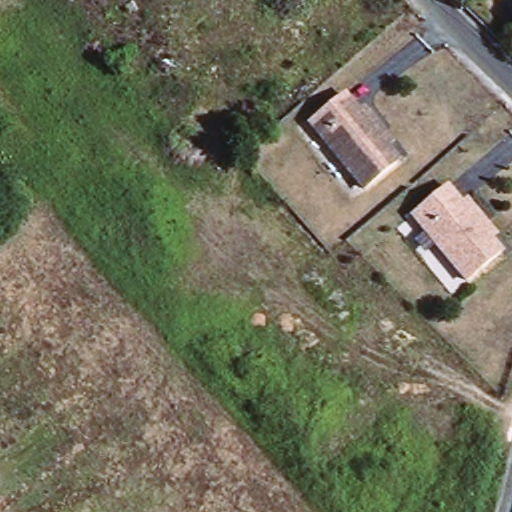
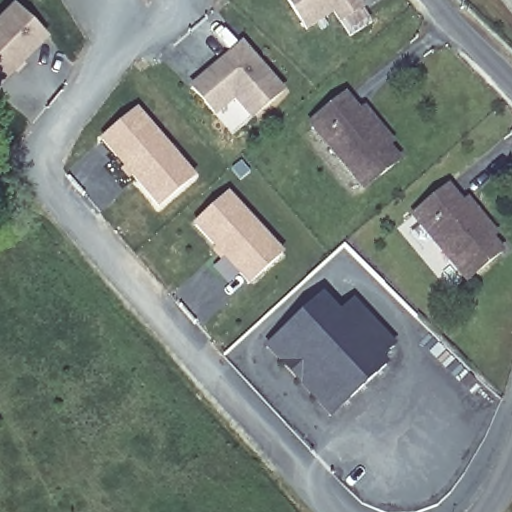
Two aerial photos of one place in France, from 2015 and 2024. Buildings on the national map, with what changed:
new [(361,9),(339,23),(332,13),(304,30),(285,0),(354,0),(361,9)]
new [(42,33),(0,75),(0,11),(10,1),(42,33)]
new [(240,45),(280,93),(249,119),(232,99),(213,115),(189,88),(240,45)]
unchanged [(379,134),(375,138),(401,169),(375,190),(323,121),(346,103),(361,121),(366,117),(379,134)]
new [(134,109),(191,175),(156,205),(99,139),(134,109)]
unchanged [(375,190),(366,197),(312,131),(323,121),(375,190)]
unchanged [(414,219),(433,205),(451,191),(454,194),(464,209),(470,205),(483,222),(478,226),(497,250),(503,258),(494,264),(477,278),(467,286),(459,276),(414,219)]
new [(225,195),(279,254),(246,284),(192,225),(225,195)]
new [(266,346),(324,292),(339,311),(355,297),(396,344),(381,357),(389,364),(329,418),(266,346)]

